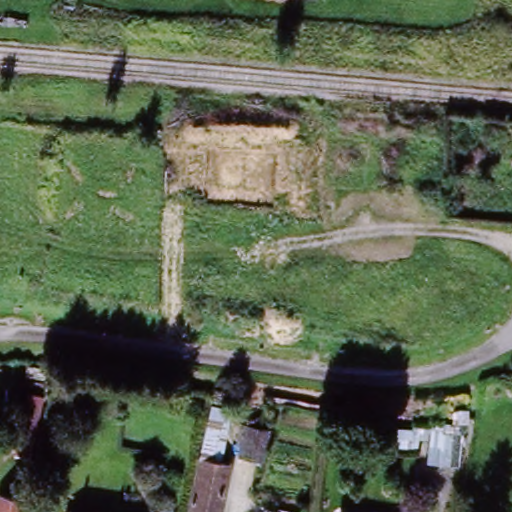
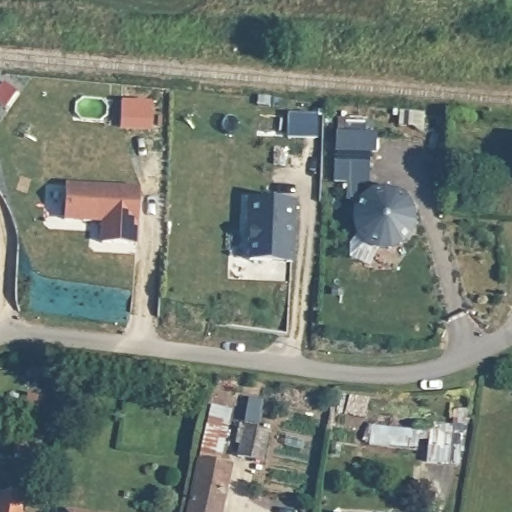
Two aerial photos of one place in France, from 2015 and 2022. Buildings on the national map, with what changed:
new [(154,107),(151,132),(120,129),(123,104),(154,107)]
new [(316,136),(301,136),(287,136),(288,116),(302,116),(317,116),(316,136)]
new [(340,136),(370,136),(370,151),(365,151),(364,180),(339,179),(340,136)]
new [(90,225),(64,223),(66,188),(139,193),(135,249),(100,247),(102,222),(101,225),(90,225)]
new [(352,212),(358,202),(369,195),(380,192),(393,194),(404,202),(410,212),(412,225),(407,237),(399,246),(387,252),(375,251),(364,246),(355,237),(352,225),(352,212)]
new [(293,207),(291,267),(247,266),(249,224),(246,224),(247,205),(293,207)]
unchanged [(45,399),(34,458),(20,457),(14,454),(27,395),(45,399)]
unchanged [(217,463),(230,465),(223,512),(192,512),(207,422),(224,425),(217,463)]
unchanged [(427,463),(432,424),(465,428),(458,467),(427,463)]
unchanged [(267,432),(262,464),(240,459),(244,428),(267,432)]
unchanged [(26,512),(0,512),(0,477),(0,474),(31,478),(26,512)]
unchanged [(82,512),(62,512),(62,509),(82,512)]

